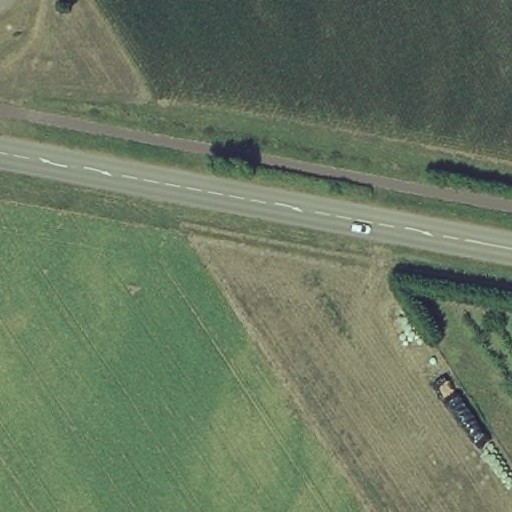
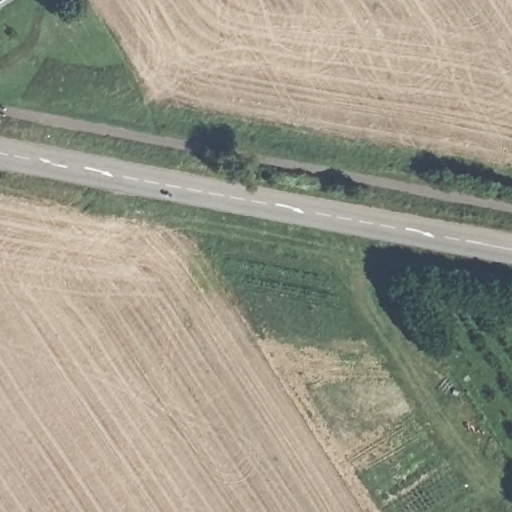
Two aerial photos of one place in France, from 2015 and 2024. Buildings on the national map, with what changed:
unchanged [(8,0),(0,5),(0,0),(8,0)]

